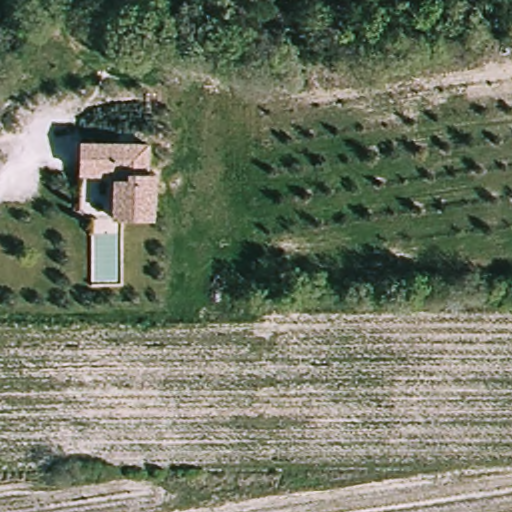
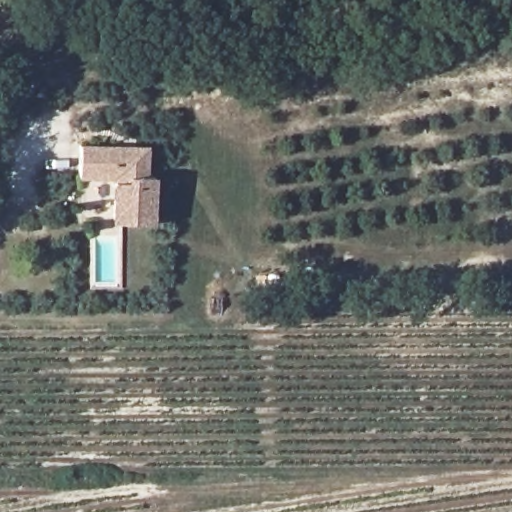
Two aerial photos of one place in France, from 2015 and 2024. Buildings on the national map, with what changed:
unchanged [(147,173),(153,172),(153,218),(119,218),(118,173),(80,172),(80,144),(118,144),(137,144),(147,144),(147,173)]

